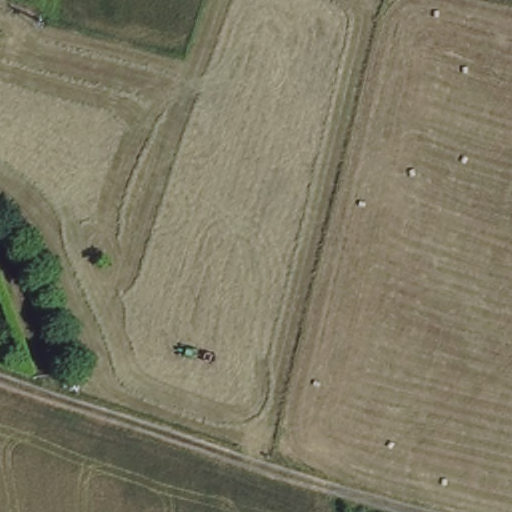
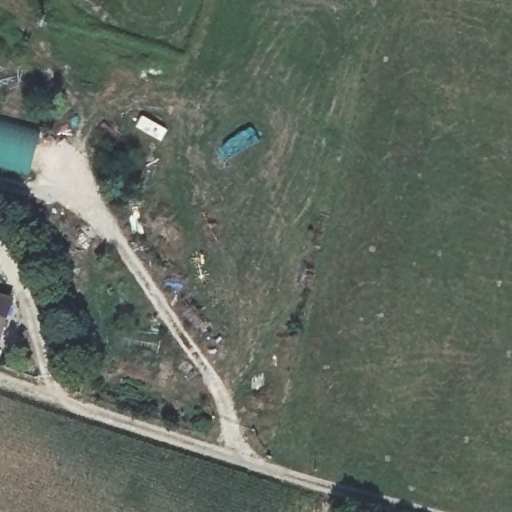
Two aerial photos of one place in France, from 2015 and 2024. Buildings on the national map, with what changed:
new [(44,126),(32,174),(0,165),(0,113),(44,126)]

